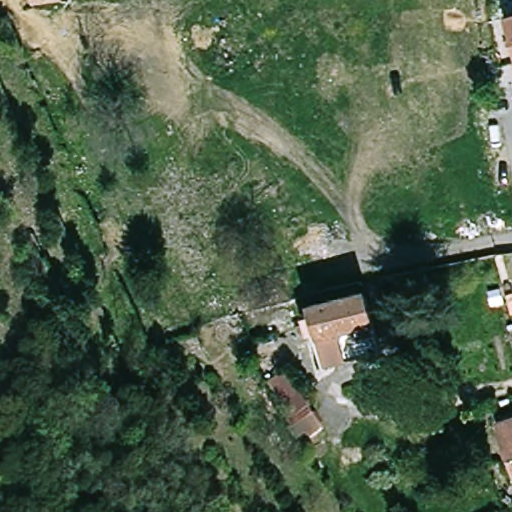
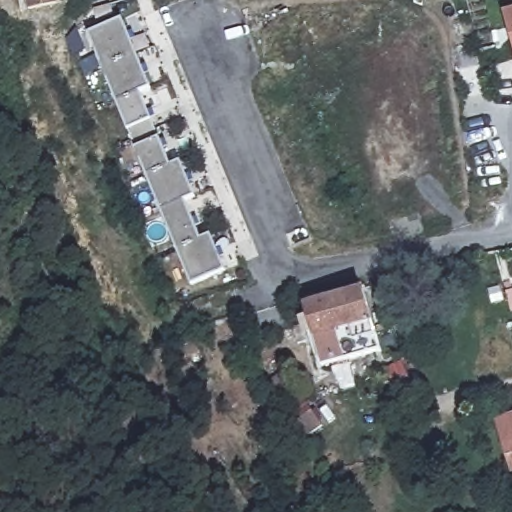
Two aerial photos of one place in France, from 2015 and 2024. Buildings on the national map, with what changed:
unchanged [(58,3),(28,10),(26,0),(59,0),(58,3)]
unchanged [(511,12),(512,12),(512,15),(511,12)]
new [(190,283),(88,32),(122,18),(149,87),(138,91),(169,166),(180,162),(194,195),(183,200),(200,240),(210,235),(225,269),(190,283)]
unchanged [(368,289),(378,329),(343,338),(348,356),(327,361),(312,303),(368,289)]
unchanged [(315,335),(303,339),(297,322),(308,318),(315,335)]
unchanged [(412,392),(397,398),(387,373),(402,367),(412,392)]
unchanged [(285,371),(310,410),(294,421),(267,382),(285,371)]
unchanged [(500,419),(512,415),(512,460),(500,419)]

